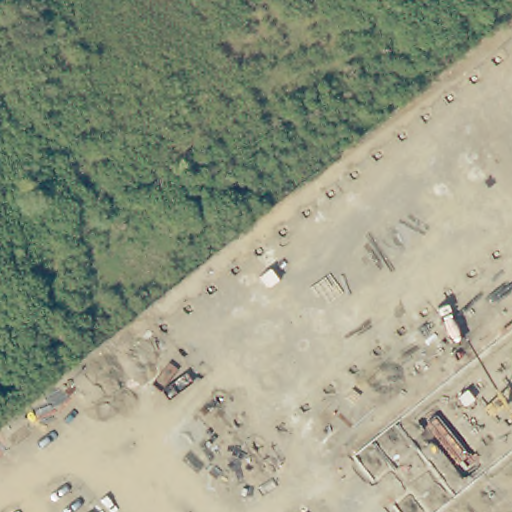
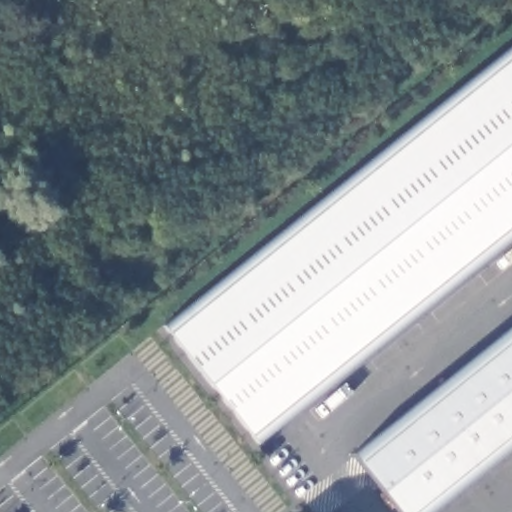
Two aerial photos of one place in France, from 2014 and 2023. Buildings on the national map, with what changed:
new [(512,45),(512,241),(258,442),(164,328),(512,45)]
new [(512,329),(512,451),(436,512),(399,512),(354,457),(512,329)]

